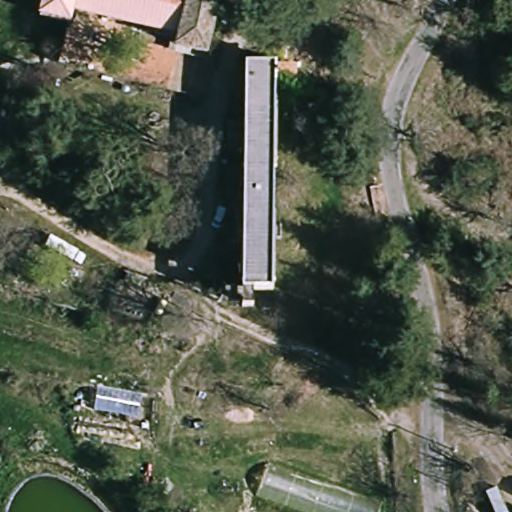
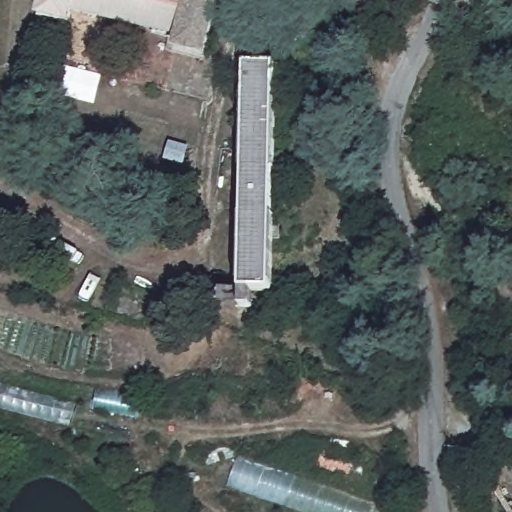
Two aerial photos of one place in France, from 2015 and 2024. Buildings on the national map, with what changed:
unchanged [(68,20),(39,14),(43,0),(218,0),(205,55),(174,47),(176,36),(73,11),(71,21),(68,20)]
unchanged [(288,71),(287,91),(267,90),(260,298),(231,297),(238,69),(288,71)]
unchanged [(53,141),(52,148),(44,146),(46,138),(53,141)]
new [(70,426),(0,408),(0,383),(76,403),(70,426)]
unchanged [(227,484),(237,454),(378,504),(375,512),(306,512),(227,484)]

